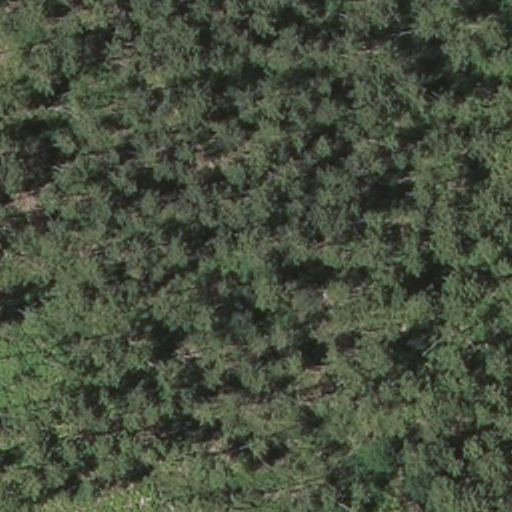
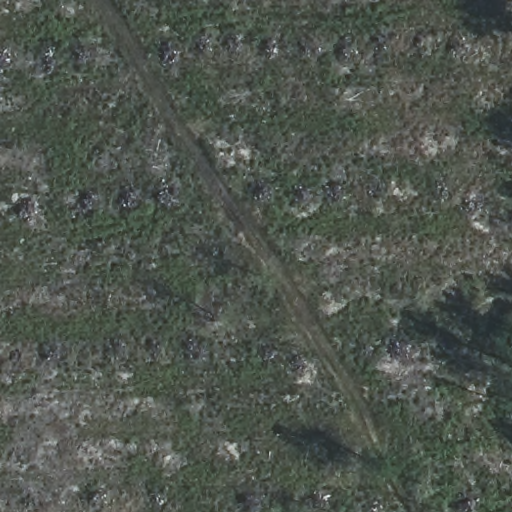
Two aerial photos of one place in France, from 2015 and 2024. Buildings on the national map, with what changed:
[]

